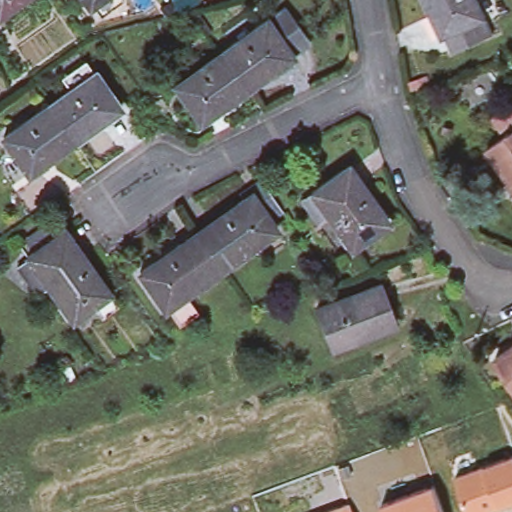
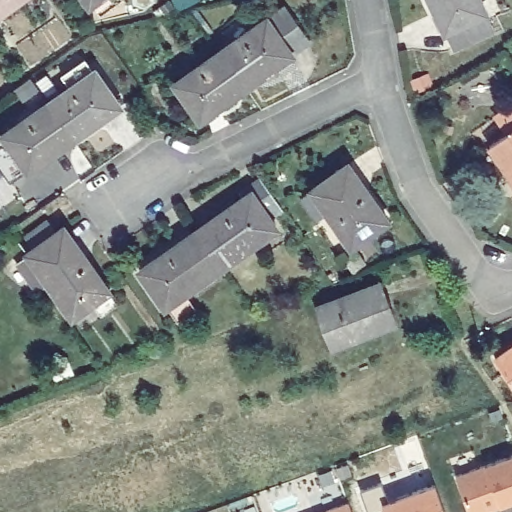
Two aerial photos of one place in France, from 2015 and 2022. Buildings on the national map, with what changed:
unchanged [(0,20),(0,0),(28,0),(0,20)]
unchanged [(74,0),(95,0),(81,10),(74,0)]
unchanged [(484,14),(442,33),(427,0),(477,0),(484,14)]
unchanged [(218,55),(264,22),(290,59),(243,92),(218,55)]
unchanged [(218,55),(243,92),(199,124),(172,87),(218,55)]
unchanged [(42,107),(87,76),(113,112),(67,143),(42,107)]
unchanged [(0,145),(0,136),(42,107),(67,143),(21,175),(0,145)]
unchanged [(512,130),(512,164),(496,141),(512,130)]
unchanged [(348,166),(390,221),(352,249),(311,194),(348,166)]
unchanged [(241,195),(237,190),(250,181),(273,212),(260,221),(268,232),(212,271),(186,234),(241,195)]
unchanged [(28,258),(27,257),(65,230),(112,294),(74,322),(49,287),(38,295),(17,267),(28,258)]
unchanged [(157,310),(130,272),(186,234),(212,271),(176,296),(187,312),(171,323),(160,308),(157,310)]
unchanged [(307,308),(372,284),(389,326),(351,340),(323,350),(320,344),(307,308)]
unchanged [(512,338),(512,389),(487,355),(512,338)]
unchanged [(485,464),(485,466),(512,456),(512,503),(500,507),(499,504),(482,512),(470,512),(456,475),(485,464)]
unchanged [(435,485),(445,512),(385,512),(382,503),(435,485)]
unchanged [(351,512),(322,512),(348,502),(351,512)]

